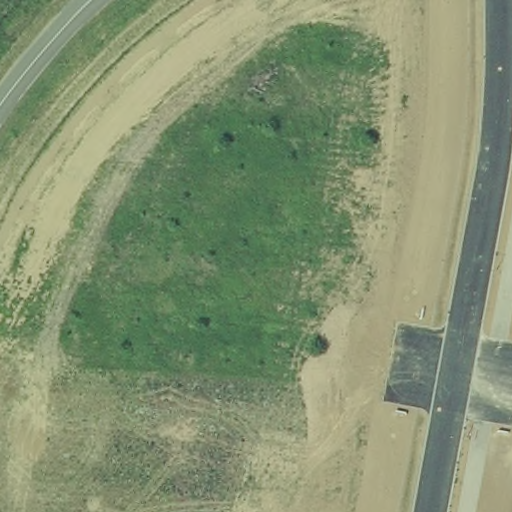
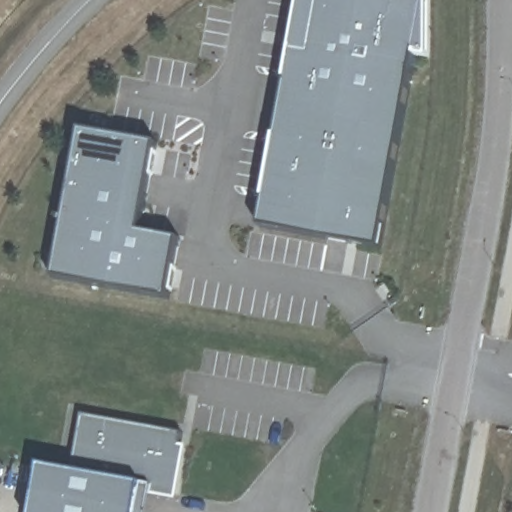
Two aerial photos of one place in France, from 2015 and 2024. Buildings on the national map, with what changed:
new [(440,66),(427,63),(390,252),(266,228),(308,0),(441,0),(440,66)]
new [(86,135),(167,148),(152,239),(189,246),(180,305),(58,282),(86,135)]
new [(78,475),(88,418),(190,437),(178,497),(158,494),(149,492),(145,512),(39,512),(47,469),(78,475)]
new [(158,494),(155,512),(145,512),(149,492),(158,494)]

